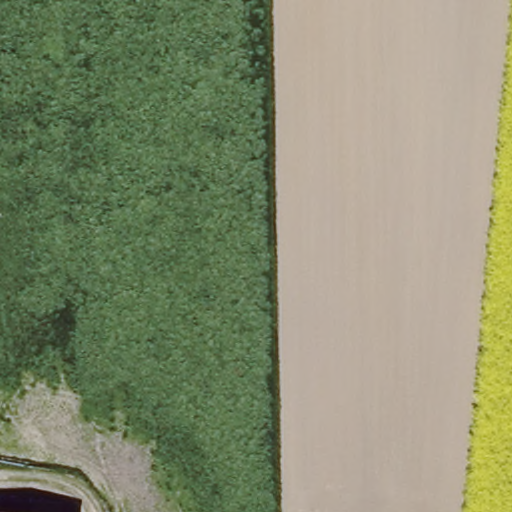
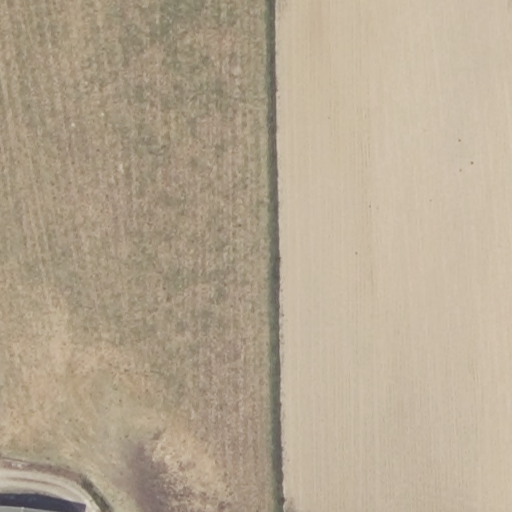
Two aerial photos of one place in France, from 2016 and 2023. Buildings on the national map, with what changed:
unchanged [(0,512),(0,508),(66,512),(0,512)]

